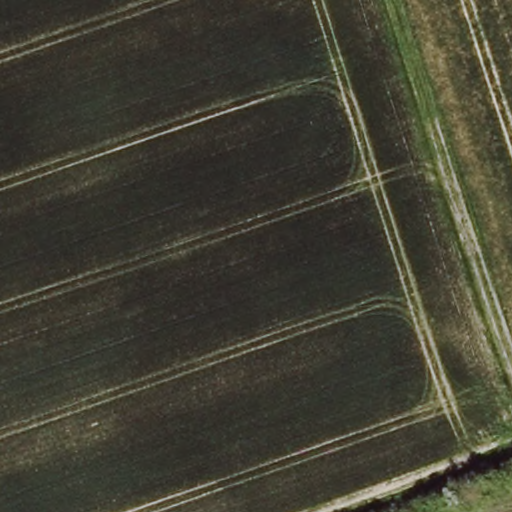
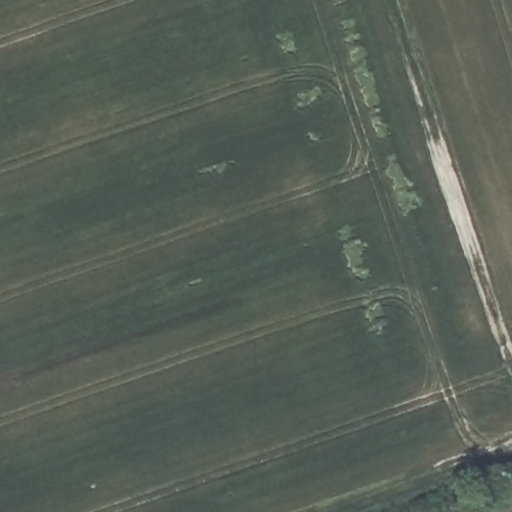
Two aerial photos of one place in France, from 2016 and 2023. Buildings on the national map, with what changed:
[]

